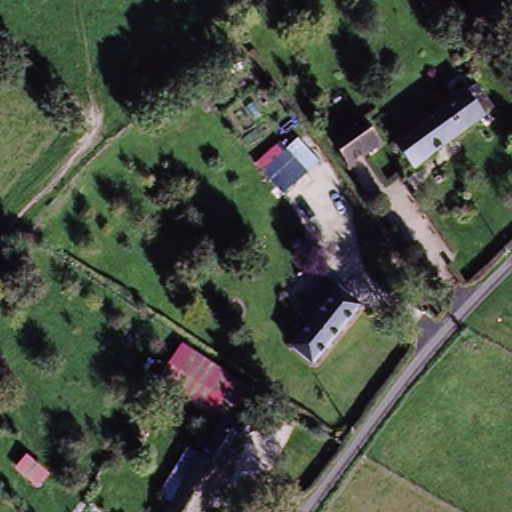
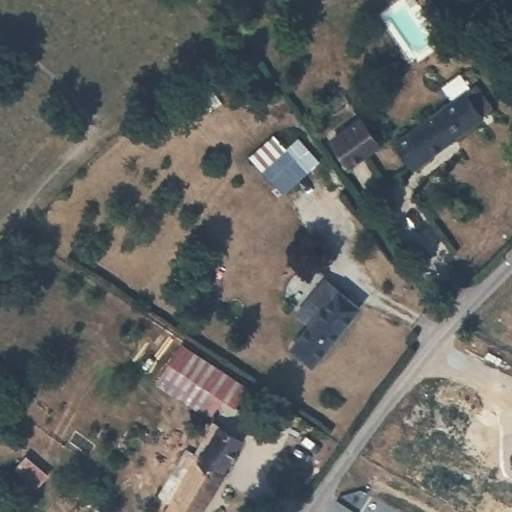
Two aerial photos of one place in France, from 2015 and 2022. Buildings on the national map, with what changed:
unchanged [(392,142),(470,84),(488,108),(411,168),(392,142)]
unchanged [(330,142),(358,121),(375,144),(349,166),(330,142)]
unchanged [(280,160),(306,137),(332,167),(308,190),(280,160)]
unchanged [(316,367),(290,346),(320,306),(312,298),(330,277),(366,305),(316,367)]
unchanged [(202,383),(192,399),(162,378),(182,342),(253,388),(240,411),(202,383)]
unchanged [(202,512),(165,512),(212,429),(240,446),(202,512)]

